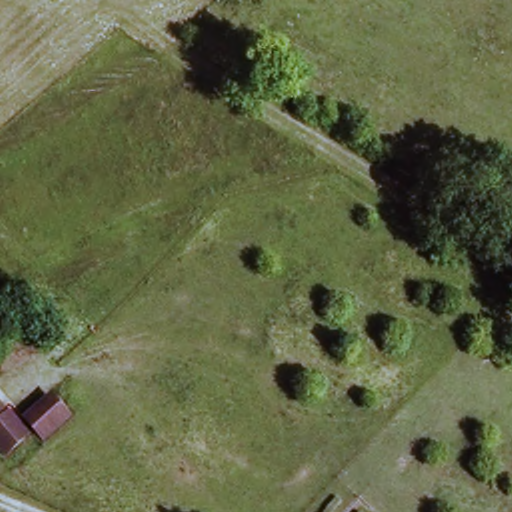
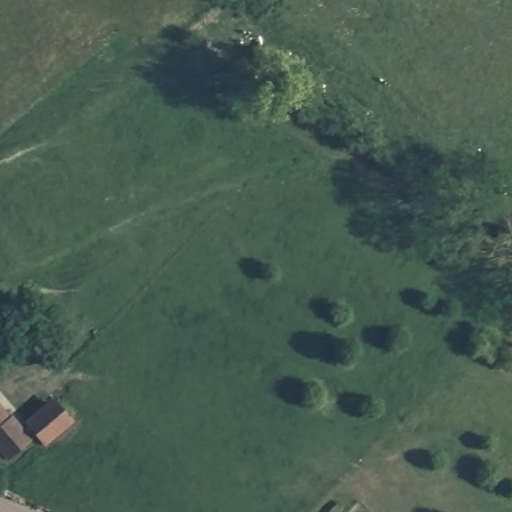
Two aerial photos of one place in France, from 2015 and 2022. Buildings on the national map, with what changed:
unchanged [(40,440),(28,423),(59,402),(71,419),(40,440)]
unchanged [(0,404),(26,442),(3,457),(0,452),(0,404)]

